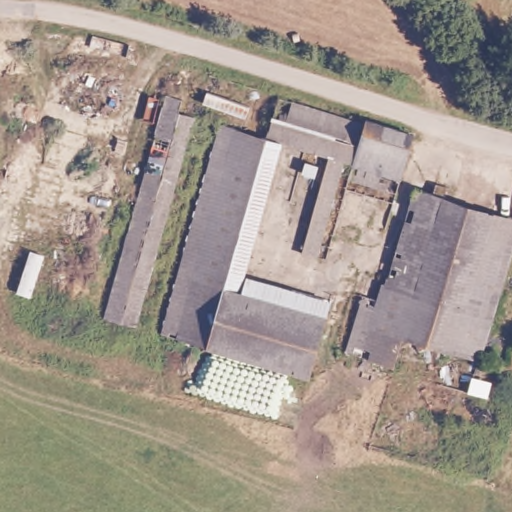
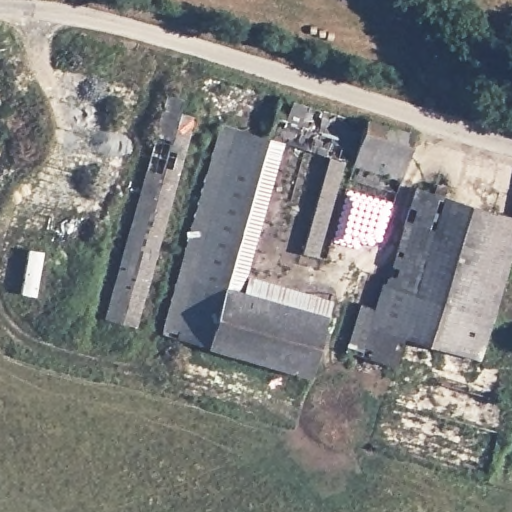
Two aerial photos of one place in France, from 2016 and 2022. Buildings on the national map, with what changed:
unchanged [(174,96),(172,109),(187,115),(125,323),(96,314),(161,93),(174,96)]
unchanged [(416,131),(399,189),(346,174),(346,163),(339,161),(313,249),(298,244),(324,155),(285,143),(268,138),(279,99),(359,123),(362,115),(416,131)]
unchanged [(209,339),(164,325),(224,117),(250,125),(248,132),(268,138),(209,339)]
unchanged [(285,143),(249,270),(336,295),(315,369),(209,339),(268,138),(285,143)]
unchanged [(404,335),(397,366),(392,364),(388,379),(355,370),(351,350),(374,274),(394,279),(424,186),(512,215),(512,257),(481,359),(404,335)]

